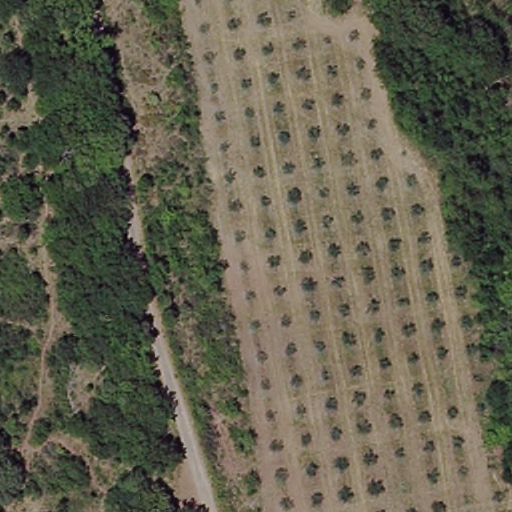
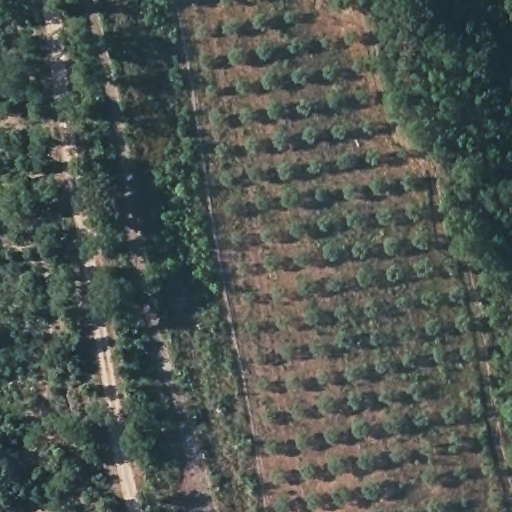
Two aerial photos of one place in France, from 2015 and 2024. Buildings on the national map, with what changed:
unchanged [(160,493),(153,468),(168,466),(174,491),(160,493)]

